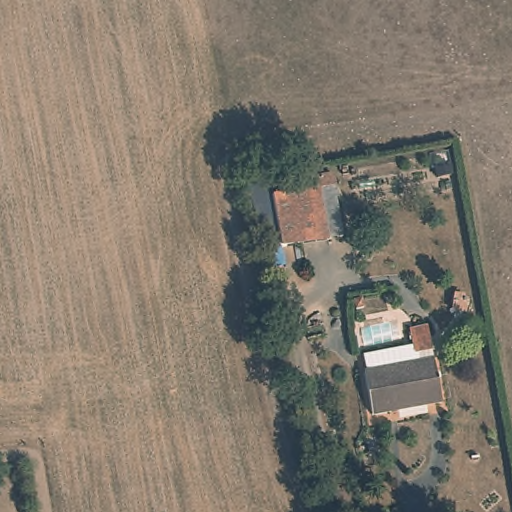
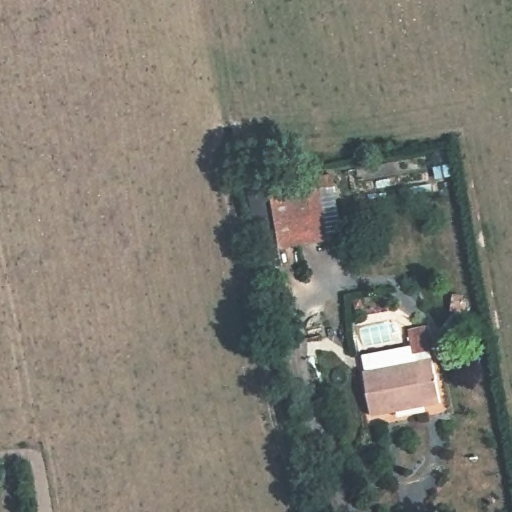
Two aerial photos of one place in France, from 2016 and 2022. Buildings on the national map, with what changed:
unchanged [(328,225),(277,235),(268,188),(317,179),(328,225)]
unchanged [(441,406),(373,417),(366,371),(363,353),(398,349),(402,366),(434,361),(441,406)]

